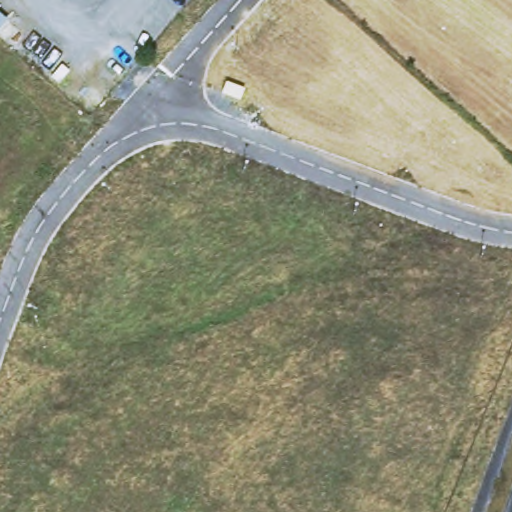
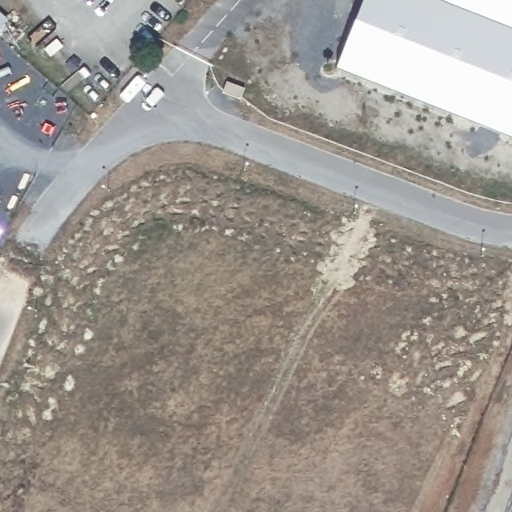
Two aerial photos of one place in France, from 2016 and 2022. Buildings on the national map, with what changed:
new [(336,69),(363,0),(512,0),(512,138),(336,69)]

